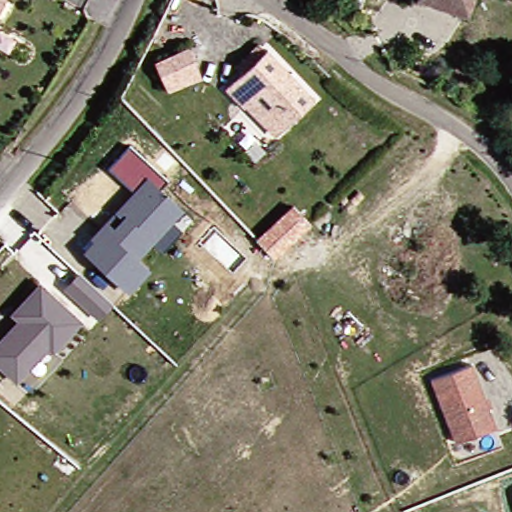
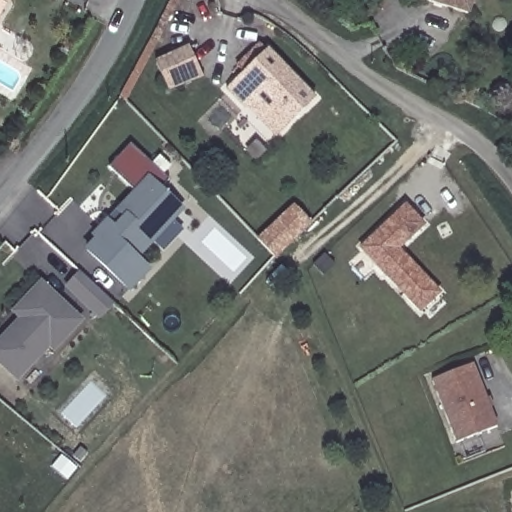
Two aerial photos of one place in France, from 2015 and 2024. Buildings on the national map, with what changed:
unchanged [(471,15),(450,10),(419,1),(419,0),(475,0),(471,15)]
unchanged [(0,10),(0,5),(3,6),(0,10)]
unchanged [(254,105),(252,108),(233,88),(250,71),(244,64),(267,42),(273,48),(274,47),(324,96),(290,129),(284,135),(254,105)]
unchanged [(200,76),(172,92),(156,65),(187,48),(200,76)]
unchanged [(165,252),(154,241),(138,258),(150,269),(130,289),(89,249),(99,238),(95,235),(108,221),(106,220),(119,208),(120,210),(131,199),(137,192),(110,167),(133,144),(172,180),(163,189),(179,205),(184,210),(174,220),(186,231),(165,252)]
new [(407,204),(426,224),(400,249),(444,295),(424,314),(362,248),(407,204)]
unchanged [(272,259),(255,241),(293,207),(309,226),(272,259)]
unchanged [(13,313),(40,284),(63,305),(75,293),(77,291),(81,295),(109,322),(96,337),(77,319),(49,349),(45,344),(13,378),(0,365),(0,335),(17,317),(13,313)]
unchanged [(497,428),(455,443),(432,379),(473,363),(497,428)]

